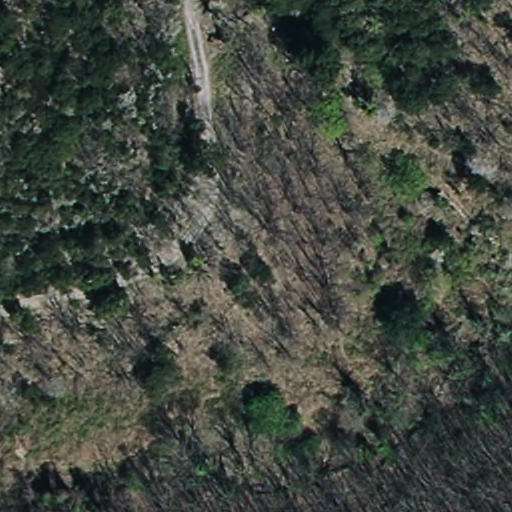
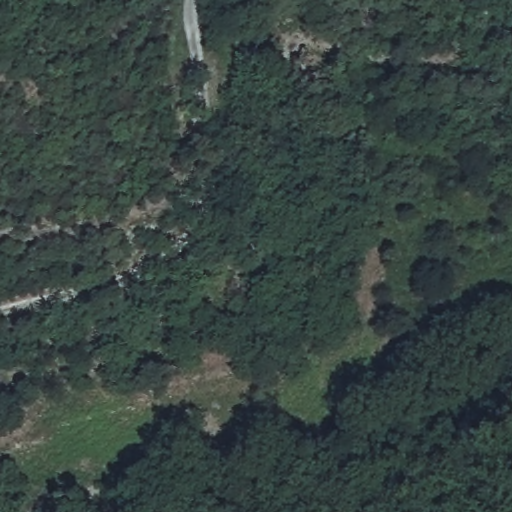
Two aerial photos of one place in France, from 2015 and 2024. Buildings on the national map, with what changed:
[]

